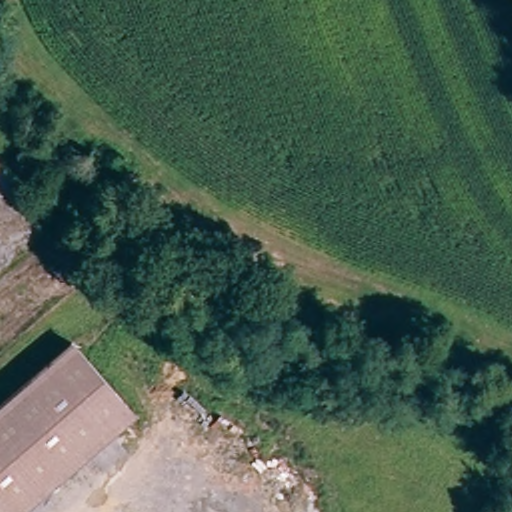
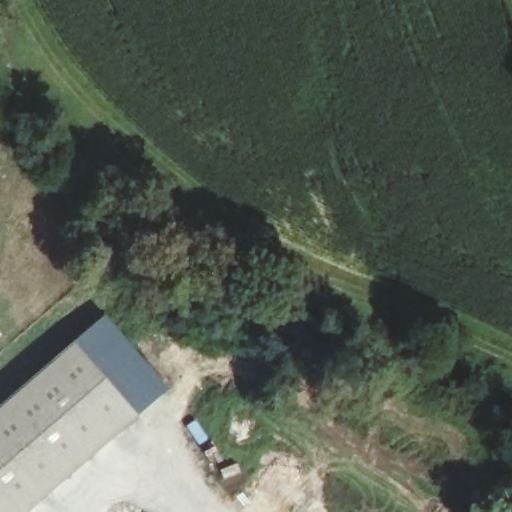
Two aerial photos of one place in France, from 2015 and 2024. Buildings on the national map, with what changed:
new [(76,343),(105,314),(170,390),(140,416),(76,343)]
unchanged [(0,408),(4,406),(76,343),(140,416),(28,512),(0,512),(0,408)]

